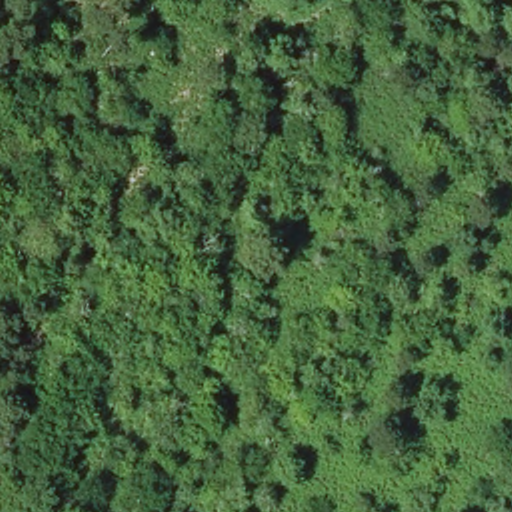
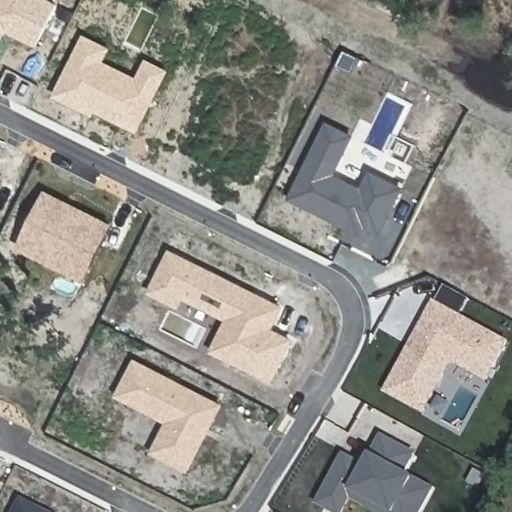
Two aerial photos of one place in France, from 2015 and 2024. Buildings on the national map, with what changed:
new [(38,47),(5,31),(0,43),(0,0),(50,0),(59,4),(38,47)]
new [(53,96),(83,35),(110,48),(105,61),(137,77),(145,60),(169,71),(138,132),(95,112),(92,117),(53,96)]
new [(362,187),(371,170),(406,187),(381,237),(366,230),(362,238),(347,230),(348,227),(289,199),(327,121),(354,135),(336,175),(362,187)]
new [(0,177),(0,174),(1,174),(0,177)]
new [(113,223),(84,283),(16,250),(45,190),(113,223)]
new [(284,306),(273,329),(294,339),(272,382),(209,354),(225,320),(184,300),(180,309),(147,293),(169,249),(284,306)]
new [(424,413),(383,391),(433,299),(509,340),(487,381),(452,362),(424,413)]
new [(189,472),(151,453),(165,423),(114,397),(135,359),(224,405),(189,472)]
new [(314,503),(342,452),(363,462),(369,451),(381,432),(416,451),(405,470),(414,476),(434,487),(421,512),(376,512),(352,499),(343,512),(330,512),(314,503)]
new [(21,498),(50,512),(14,512),(21,498)]

